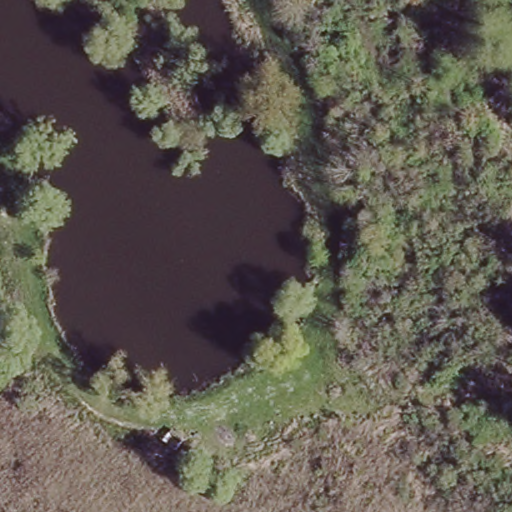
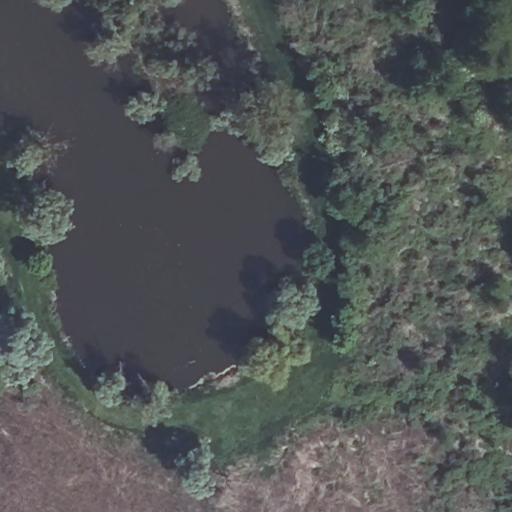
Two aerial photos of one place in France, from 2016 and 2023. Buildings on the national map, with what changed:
unchanged [(180,452),(164,440),(175,428),(191,440),(180,452)]

